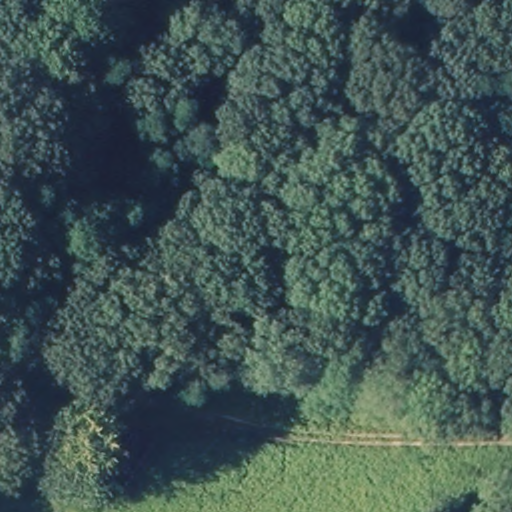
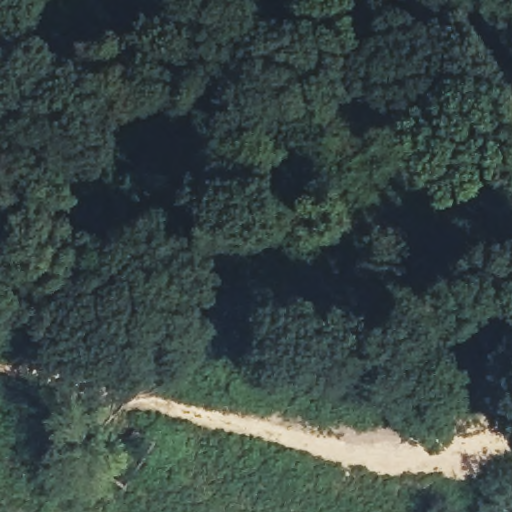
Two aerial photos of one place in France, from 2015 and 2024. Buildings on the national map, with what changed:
unchanged [(157,445),(119,494),(99,478),(134,428),(157,445)]

